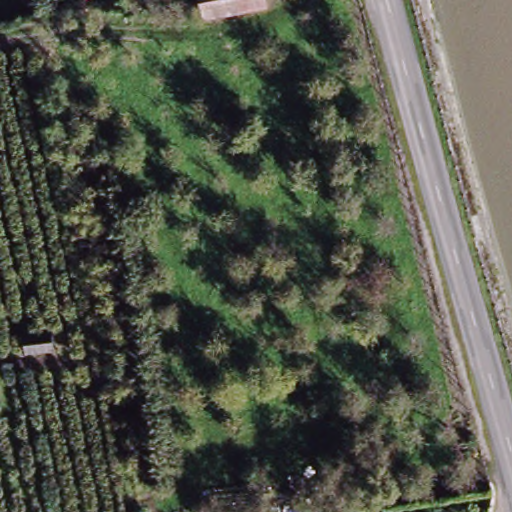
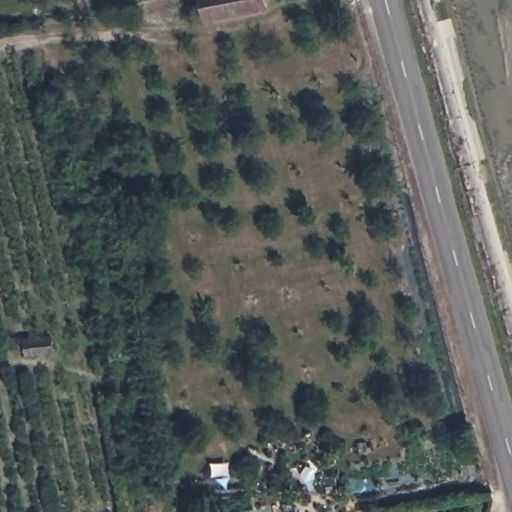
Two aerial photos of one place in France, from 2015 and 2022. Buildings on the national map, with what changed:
unchanged [(267,9),(205,20),(201,0),(266,0),(267,9)]
unchanged [(81,348),(51,352),(47,333),(76,328),(81,348)]

